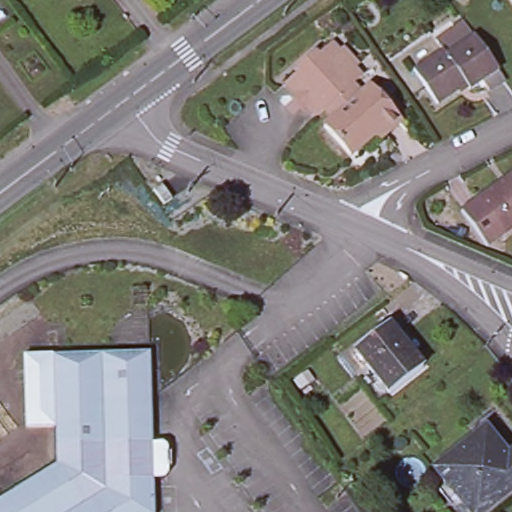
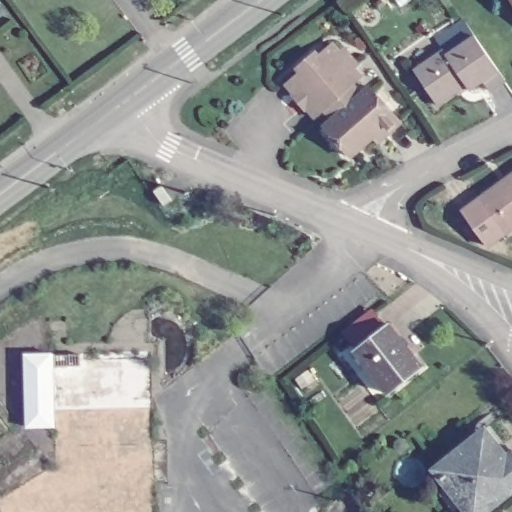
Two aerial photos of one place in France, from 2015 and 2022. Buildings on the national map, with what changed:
unchanged [(470,89),(463,80),(455,86),(459,90),(437,105),(413,70),(442,49),(435,38),(464,20),(474,35),(498,69),(505,79),(489,90),(482,81),(470,89)]
unchanged [(332,123),(325,114),(315,122),(307,112),(307,106),(300,99),(295,98),(285,88),(300,75),(296,72),(314,56),(317,60),(331,48),(340,57),(344,54),(356,69),(352,72),(360,82),(352,90),(360,99),(370,91),(400,126),(385,140),(380,135),(350,161),(324,131),(332,123)]
unchanged [(512,228),(487,246),(461,210),(512,174),(512,228)]
unchanged [(422,367),(388,393),(354,349),(387,323),(422,367)]
demolished [(150,350),(151,398),(152,443),(162,442),(167,447),(167,475),(163,479),(153,479),(154,512),(0,512),(0,497),(55,463),(54,426),(52,353),(150,350)]
demolished [(52,353),(54,426),(26,426),(25,354),(52,353)]
unchanged [(512,452),(512,490),(485,512),(467,512),(434,469),(485,429),(507,456),(512,452)]

